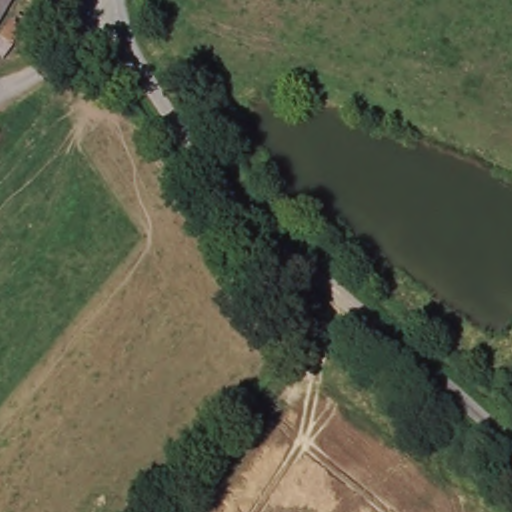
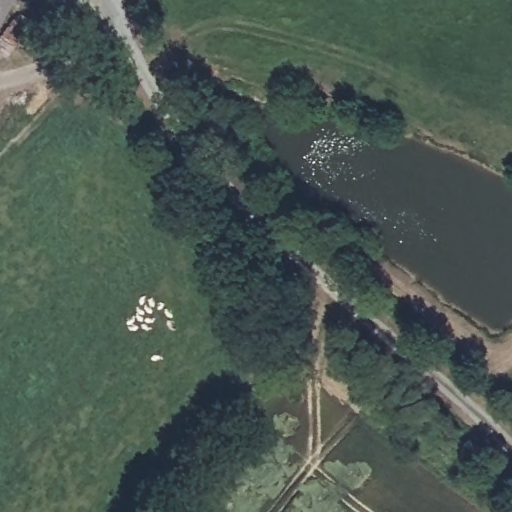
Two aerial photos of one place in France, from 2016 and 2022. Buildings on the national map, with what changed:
unchanged [(0,0),(9,0),(0,15),(0,0)]
unchanged [(8,38),(0,47),(0,31),(19,9),(30,19),(11,41),(8,38)]

